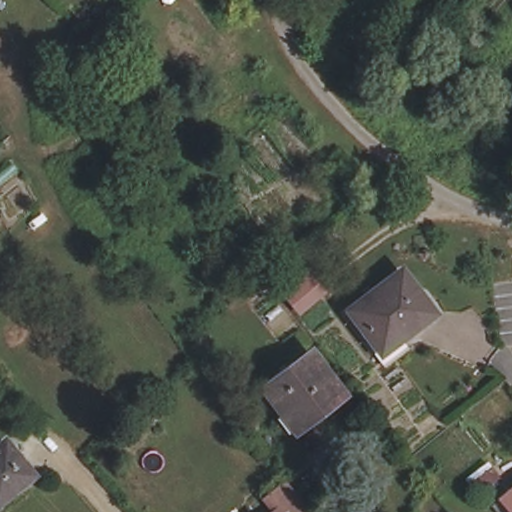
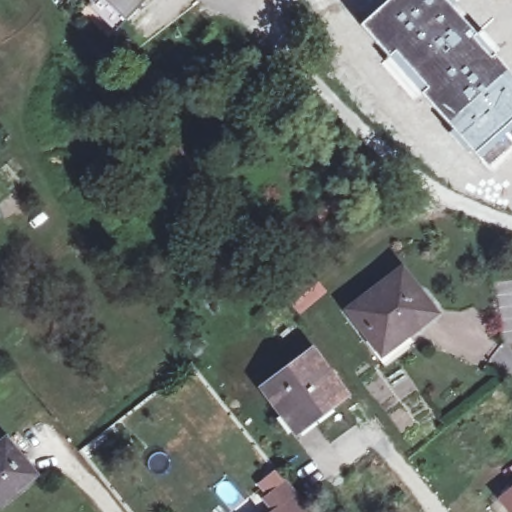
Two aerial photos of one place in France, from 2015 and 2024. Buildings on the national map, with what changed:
new [(125,23),(116,32),(90,7),(93,3),(90,0),(147,0),(125,23)]
new [(385,0),(456,0),(457,1),(453,5),(477,33),(480,30),(498,49),(495,52),(512,72),(512,147),(486,169),(416,96),(380,63),(385,59),(357,25),(385,0)]
new [(312,274),(323,288),(300,306),(289,293),(312,274)]
unchanged [(442,321),(426,333),(422,328),(395,350),(390,345),(385,350),(358,316),(407,278),(442,321)]
unchanged [(317,416),(301,428),(272,387),(314,355),(346,394),(317,416)]
unchanged [(39,478),(3,508),(0,504),(0,453),(11,444),(39,478)]
unchanged [(284,507),(273,493),(273,492),(290,479),(316,512),(277,512),(282,508),(284,507)]
unchanged [(512,494),(512,509),(505,500),(512,494)]

